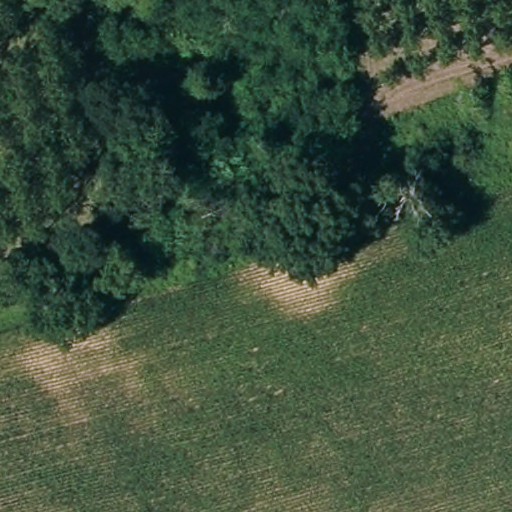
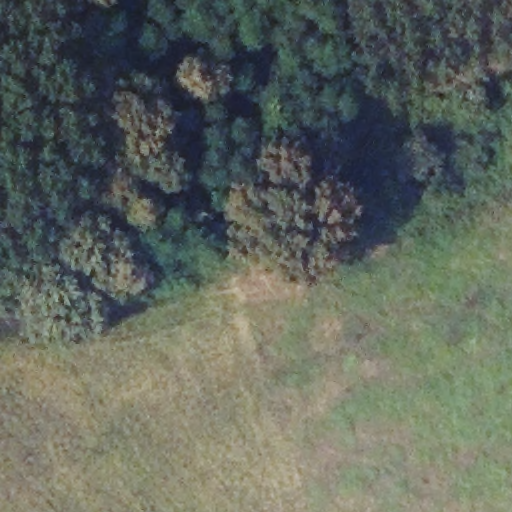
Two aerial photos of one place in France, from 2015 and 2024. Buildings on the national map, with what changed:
[]

